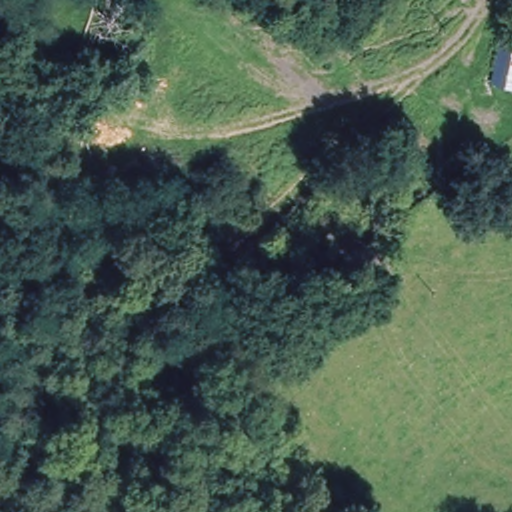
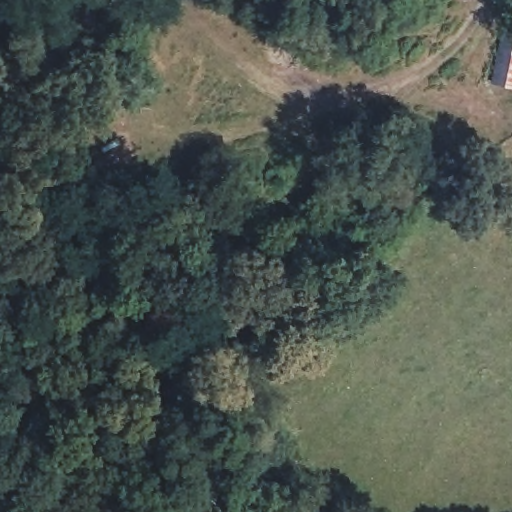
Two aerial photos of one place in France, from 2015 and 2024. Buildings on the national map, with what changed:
unchanged [(512,85),(497,81),(504,30),(512,31),(512,85)]

